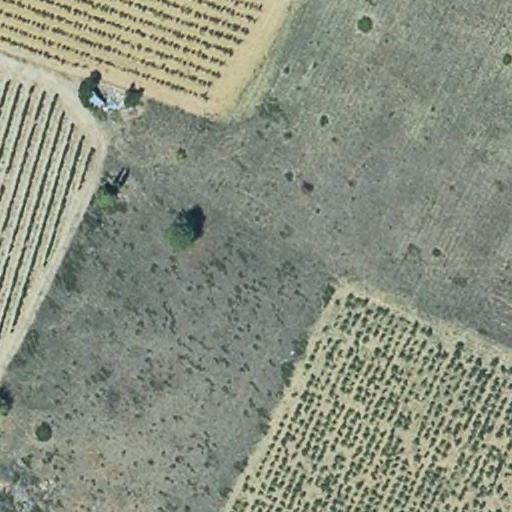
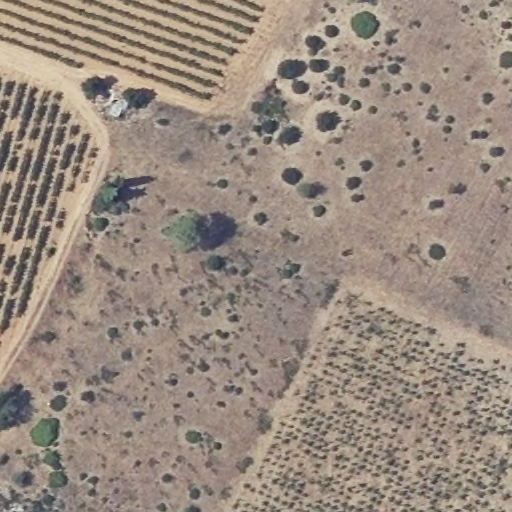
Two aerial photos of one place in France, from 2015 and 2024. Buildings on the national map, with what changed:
unchanged [(88,87),(119,98),(114,113),(96,113),(81,101),(88,87)]

